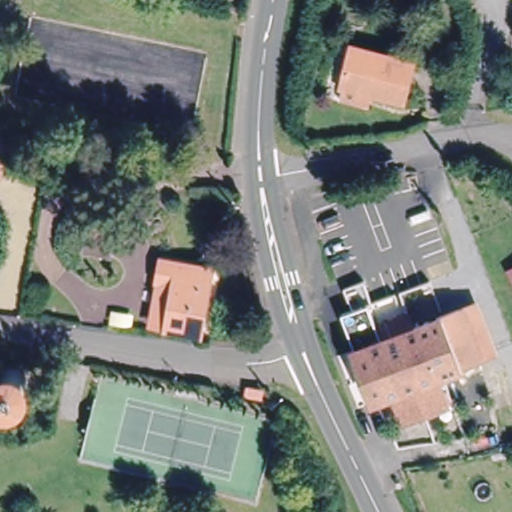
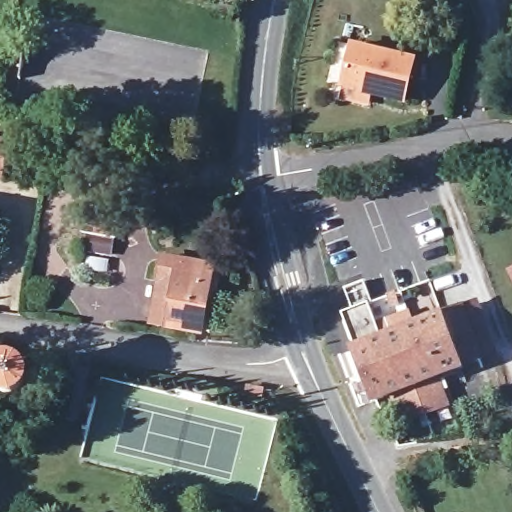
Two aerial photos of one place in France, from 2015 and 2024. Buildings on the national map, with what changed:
unchanged [(337,79),(348,40),(352,41),(408,57),(398,96),(369,88),(365,100),(334,92),(337,79)]
unchanged [(2,173),(0,173),(0,139),(8,140),(2,173)]
unchanged [(166,276),(165,276),(168,257),(215,264),(205,327),(159,319),(166,276)]
unchanged [(444,397),(436,400),(441,413),(399,428),(389,400),(372,406),(352,354),(354,353),(341,318),(368,308),(376,330),(406,318),(411,331),(462,311),(474,306),(492,354),(493,357),(480,362),(461,370),(457,371),(458,375),(438,383),(444,397)]
unchanged [(484,398),(510,391),(512,399),(512,429),(495,432),(484,398)]

